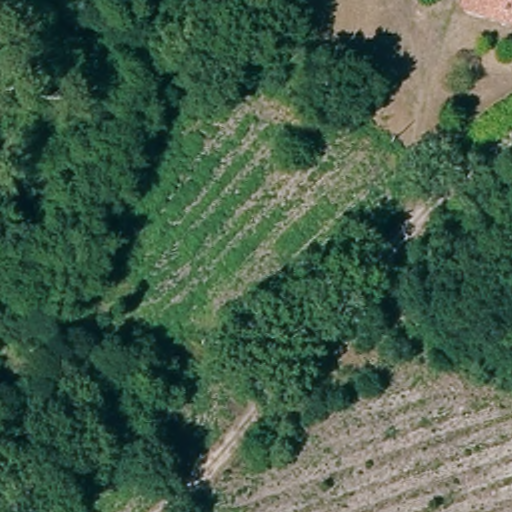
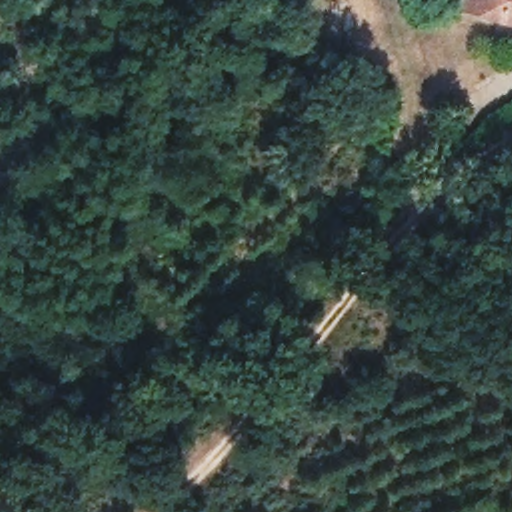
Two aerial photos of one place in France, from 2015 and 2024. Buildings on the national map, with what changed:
unchanged [(481,14),(485,0),(512,0),(512,23),(481,14)]

